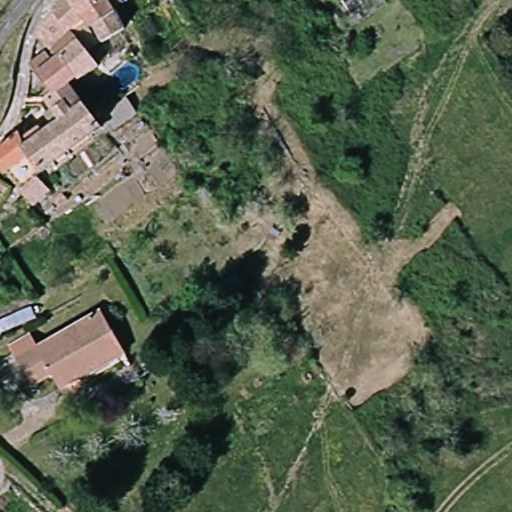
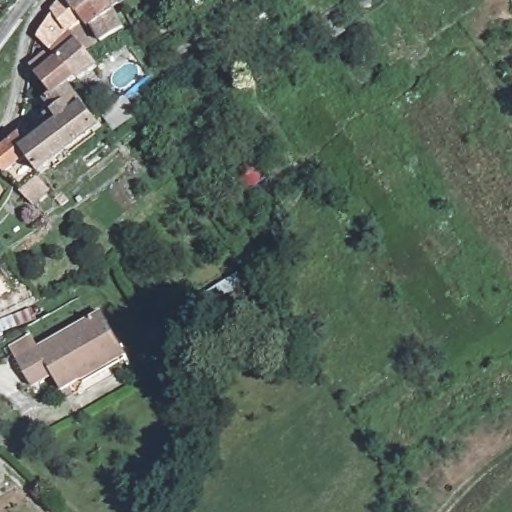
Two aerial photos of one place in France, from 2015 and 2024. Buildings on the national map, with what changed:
unchanged [(55,61),(66,53),(39,36),(44,27),(47,18),(48,9),(53,0),(72,0),(84,14),(75,26),(106,66),(92,76),(90,74),(73,85),(70,81),(57,91),(43,69),(38,62),(50,53),(55,61)]
unchanged [(104,38),(84,14),(72,0),(108,0),(125,22),(104,38)]
unchanged [(54,94),(57,91),(70,81),(73,85),(98,118),(104,129),(73,152),(52,124),(66,114),(54,94)]
unchanged [(39,181),(25,160),(9,174),(0,162),(0,147),(23,127),(32,139),(52,124),(73,152),(39,181)]
unchanged [(23,194),(35,184),(38,189),(45,199),(33,208),(30,210),(18,198),(23,194)]
unchanged [(10,291),(0,297),(0,274),(10,291)]
unchanged [(37,335),(42,345),(108,311),(119,340),(31,373),(22,354),(17,342),(37,335)]
unchanged [(127,361),(64,389),(56,373),(34,381),(31,373),(119,340),(127,361)]

